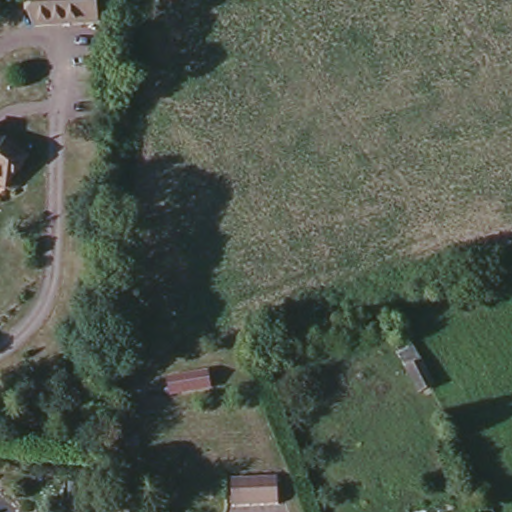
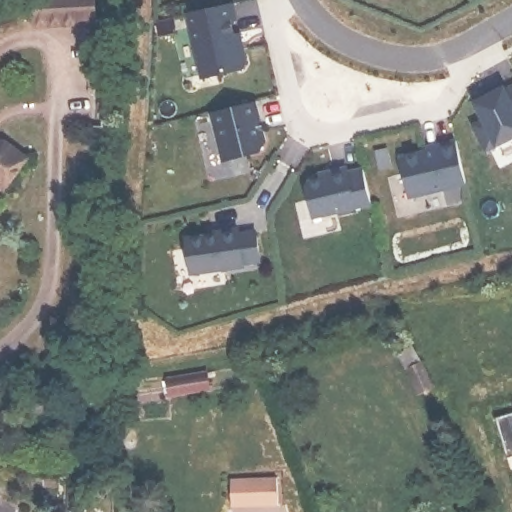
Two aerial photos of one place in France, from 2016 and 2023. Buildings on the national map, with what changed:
unchanged [(25,0),(92,0),(94,22),(26,26),(25,0)]
new [(242,44),(245,57),(240,63),(202,72),(187,7),(221,0),(233,0),(235,14),(230,15),(233,28),(238,27),(242,44)]
new [(481,116),(472,97),(502,82),(504,85),(512,81),(512,133),(484,147),(471,121),(481,116)]
new [(266,147),(227,156),(213,106),(253,95),(266,147)]
unchanged [(5,186),(0,182),(0,138),(4,138),(28,155),(5,186)]
new [(405,151),(456,140),(464,180),(414,192),(405,151)]
new [(310,177),(368,166),(375,202),(315,216),(310,177)]
new [(218,227),(218,225),(237,222),(237,227),(254,225),(258,255),(242,257),(242,260),(189,267),(185,232),(218,227)]
new [(205,227),(218,225),(218,227),(205,229),(205,227)]
unchanged [(403,387),(392,392),(379,366),(389,360),(403,387)]
new [(432,387),(421,393),(407,367),(418,361),(432,387)]
unchanged [(211,370),(214,391),(176,397),(173,378),(211,370)]
new [(512,458),(509,459),(496,418),(512,413),(512,458)]
unchanged [(279,480),(277,508),(231,507),(232,478),(279,480)]

